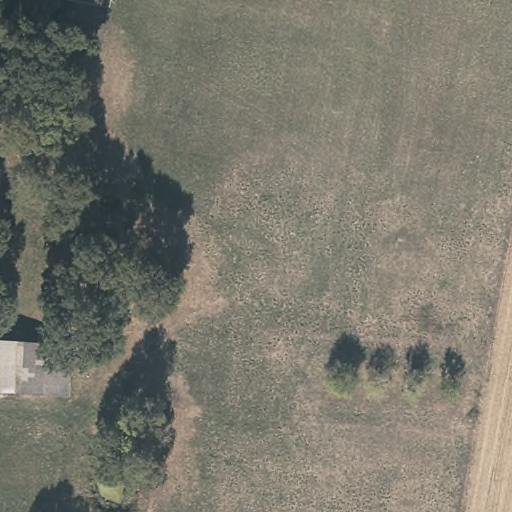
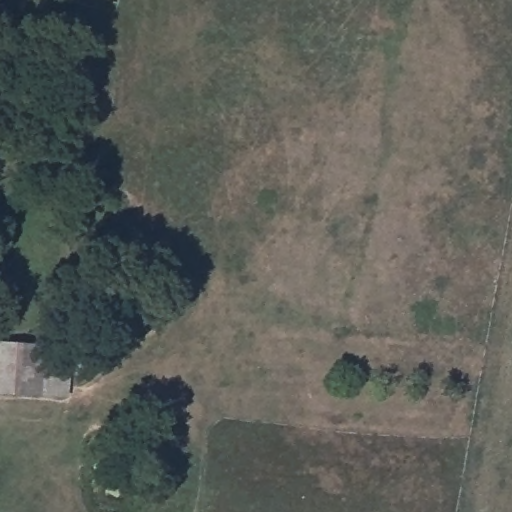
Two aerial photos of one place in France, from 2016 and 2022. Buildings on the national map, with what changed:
unchanged [(89,346),(86,404),(0,398),(0,345),(89,346)]

